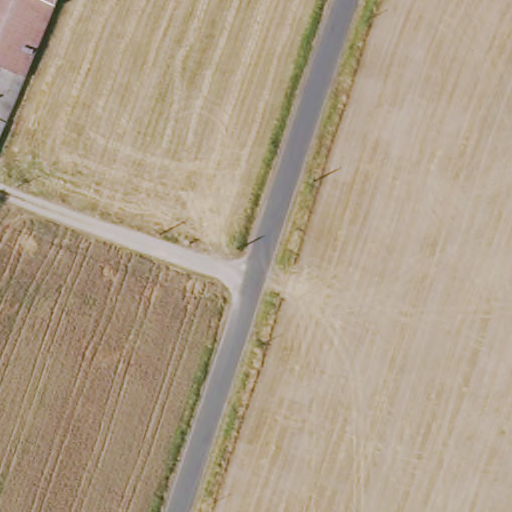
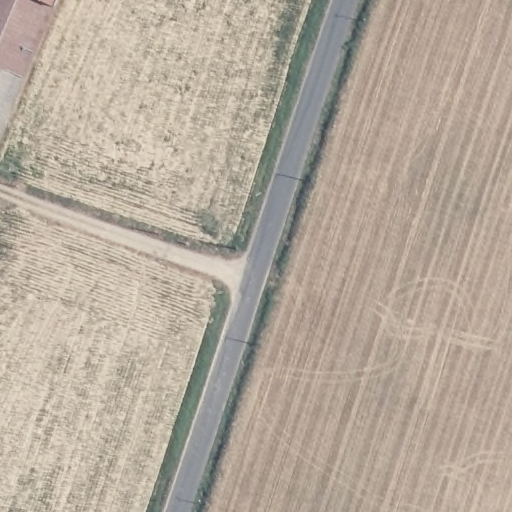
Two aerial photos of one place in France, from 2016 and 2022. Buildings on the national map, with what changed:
unchanged [(0,121),(0,0),(57,0),(34,50),(22,75),(0,121)]

